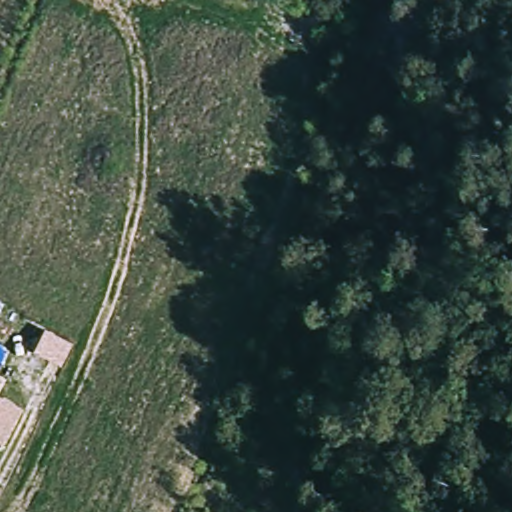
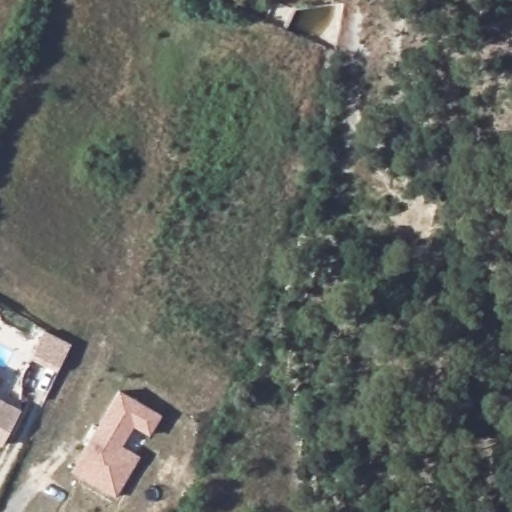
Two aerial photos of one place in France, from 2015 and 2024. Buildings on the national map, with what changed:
new [(53,318),(80,333),(69,356),(41,340),(53,318)]
new [(141,457),(116,497),(71,470),(119,390),(163,415),(149,435),(134,426),(123,446),(141,457)]
unchanged [(3,447),(0,446),(0,400),(20,411),(3,447)]

